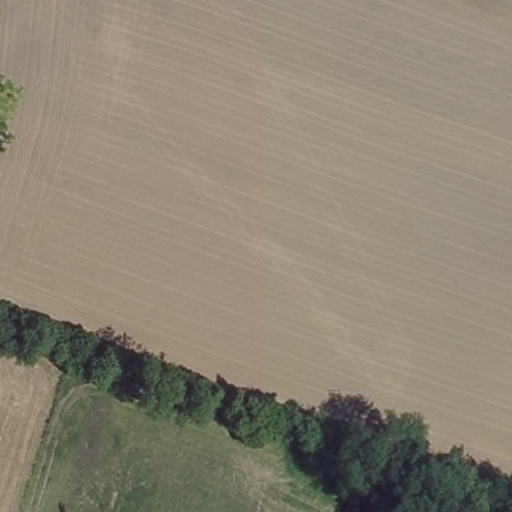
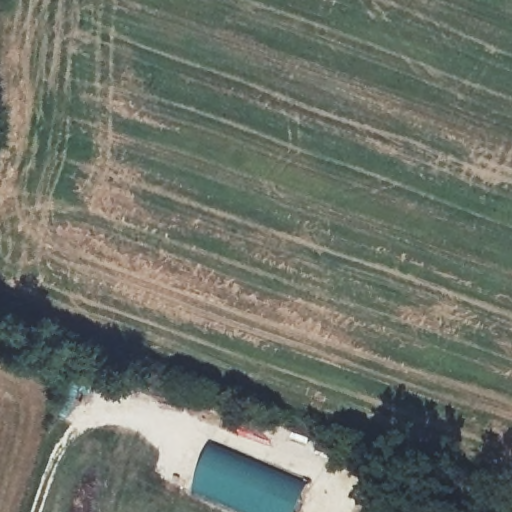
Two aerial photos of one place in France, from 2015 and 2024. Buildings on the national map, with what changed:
new [(195,485),(207,452),(251,462),(300,483),(302,497),(296,512),(250,512),(245,510),(202,492),(195,485)]

